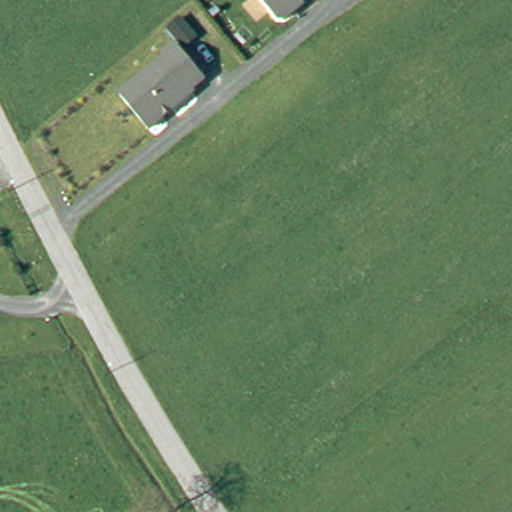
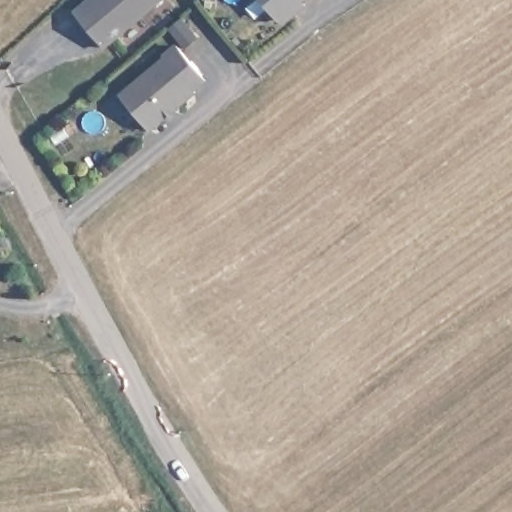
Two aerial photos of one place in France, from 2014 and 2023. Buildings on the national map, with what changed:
new [(85,0),(163,0),(105,48),(73,10),(85,0)]
unchanged [(304,1),(306,6),(282,24),(261,0),(306,0),(304,1)]
unchanged [(163,57),(161,55),(176,43),(167,29),(181,18),(196,38),(183,50),(206,82),(151,131),(118,95),(163,57)]

